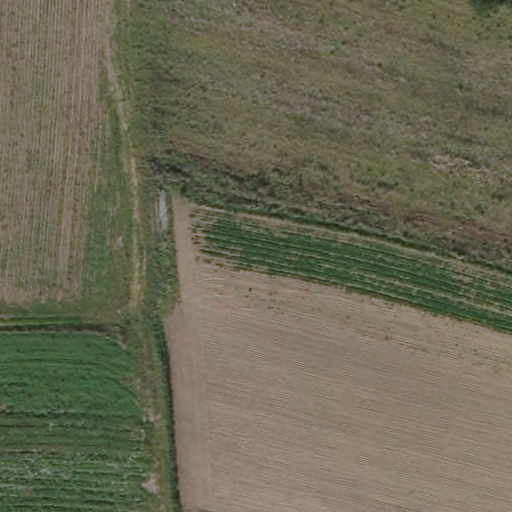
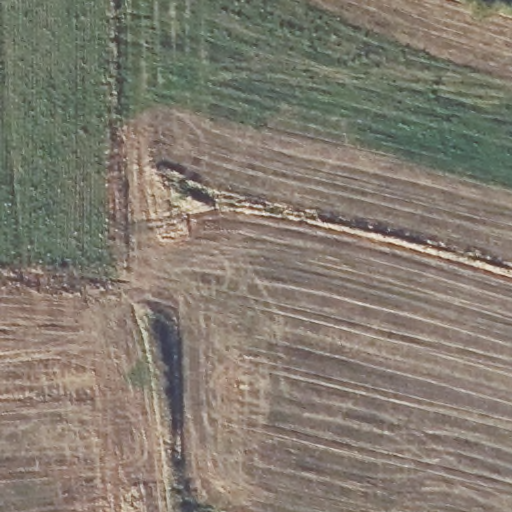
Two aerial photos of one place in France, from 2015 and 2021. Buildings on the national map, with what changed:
[]

